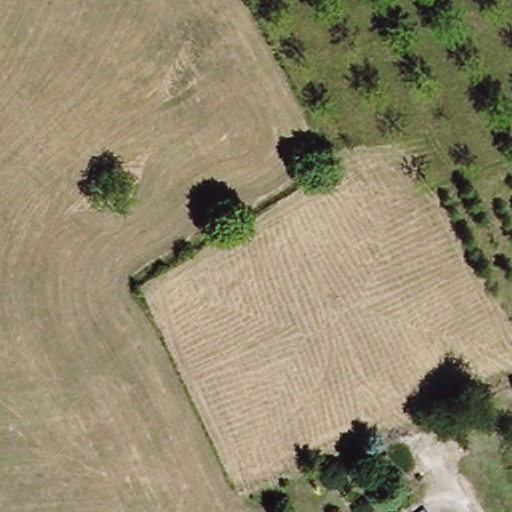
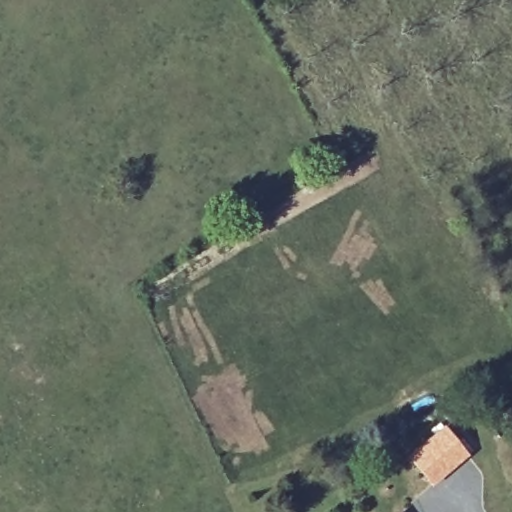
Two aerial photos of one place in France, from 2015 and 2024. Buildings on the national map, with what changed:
new [(444,426),(471,456),(433,488),(407,458),(444,426)]

